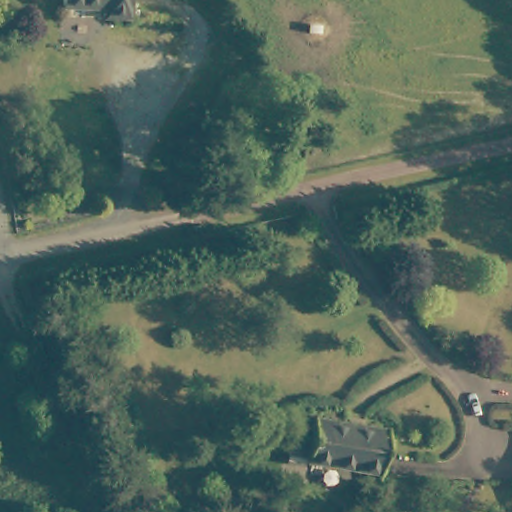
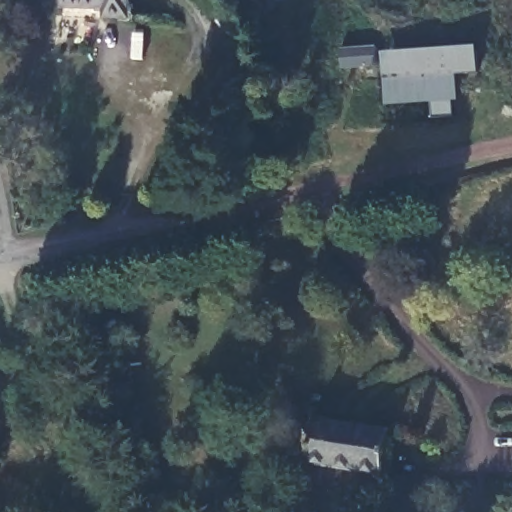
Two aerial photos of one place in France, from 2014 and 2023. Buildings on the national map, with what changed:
unchanged [(103,6),(60,6),(60,0),(127,0),(126,16),(103,16),(103,6)]
new [(432,103),(386,105),(385,65),(342,69),(340,49),(384,45),(385,51),(480,46),(482,73),(457,75),(458,100),(459,115),(434,116),(432,103)]
unchanged [(391,432),(387,453),(383,474),(305,460),(305,456),(288,453),(292,441),(309,444),(314,420),(391,432)]

